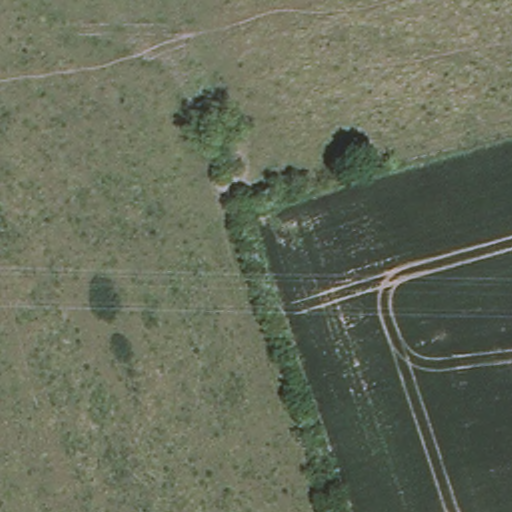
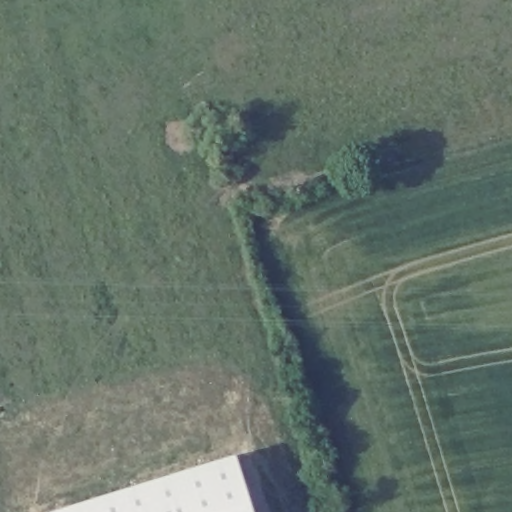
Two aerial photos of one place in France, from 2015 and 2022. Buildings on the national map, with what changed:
new [(255,512),(54,512),(237,455),(255,512)]

